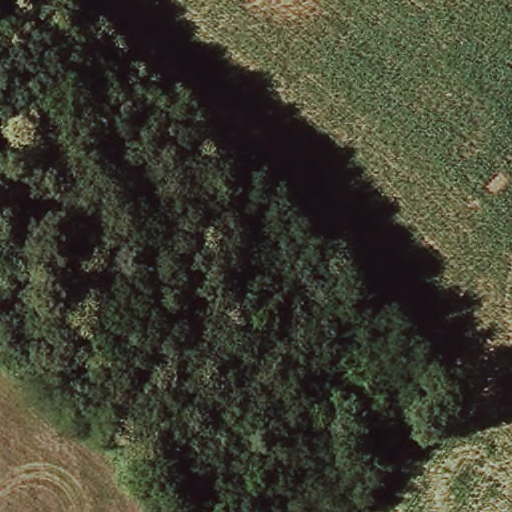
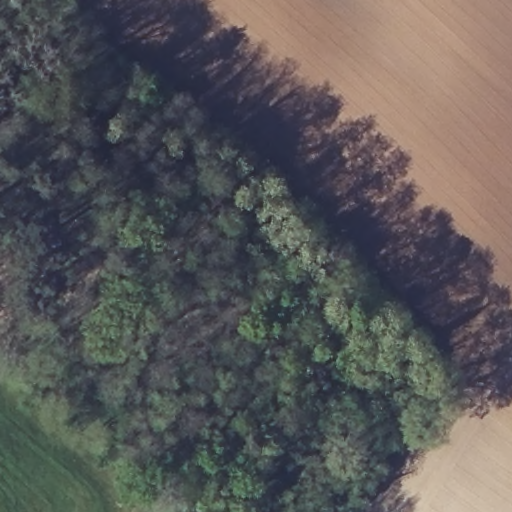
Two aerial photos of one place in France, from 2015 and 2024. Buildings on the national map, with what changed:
[]

